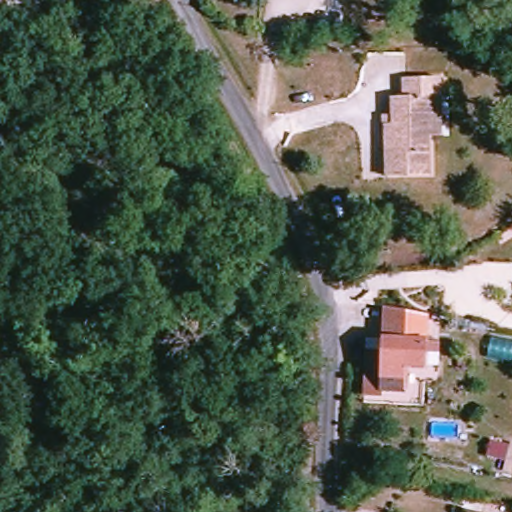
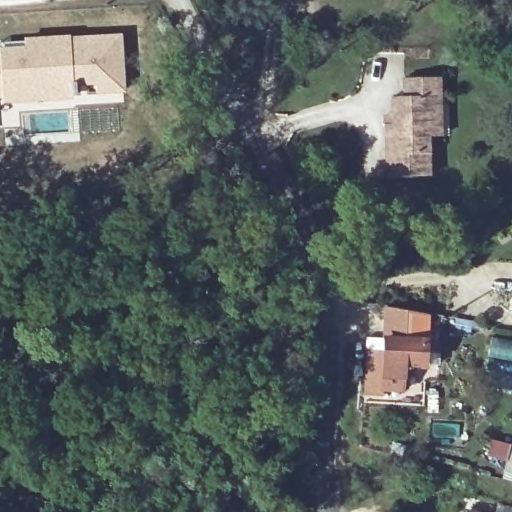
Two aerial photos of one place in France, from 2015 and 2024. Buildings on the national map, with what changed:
new [(122,32),(125,94),(75,99),(70,34),(122,32)]
new [(24,39),(24,35),(70,34),(75,99),(1,103),(1,99),(0,74),(0,40),(24,39)]
new [(1,99),(0,100),(0,74),(1,99)]
unchanged [(387,174),(385,124),(391,124),(391,98),(404,96),(405,78),(442,77),(442,98),(442,136),(430,136),(430,174),(387,174)]
unchanged [(425,366),(402,364),(401,392),(382,392),(381,397),(365,396),(368,352),(385,351),(385,322),(426,323),(425,366)]

